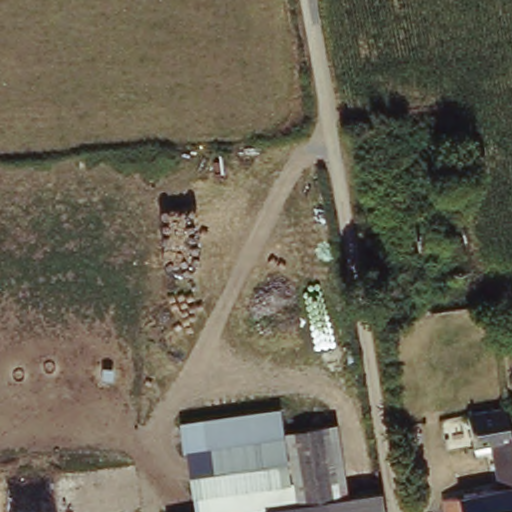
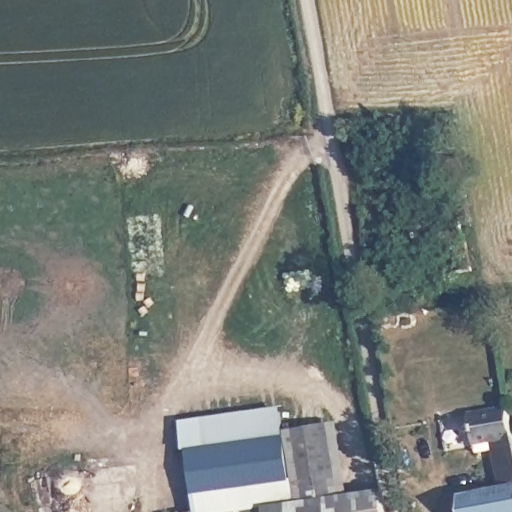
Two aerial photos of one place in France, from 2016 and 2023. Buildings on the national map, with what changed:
unchanged [(458,512),(456,497),(499,487),(493,452),(471,455),(475,444),(472,412),(510,406),(512,419),(512,512),(458,512)]
unchanged [(182,422),(285,407),(283,442),(184,455),(182,422)]
unchanged [(332,424),(343,497),(300,503),(293,504),(283,442),(284,431),(332,424)]
unchanged [(283,442),(293,504),(300,503),(301,512),(192,512),(184,455),(283,442)]
unchanged [(388,491),(391,512),(301,512),(300,503),(388,491)]

